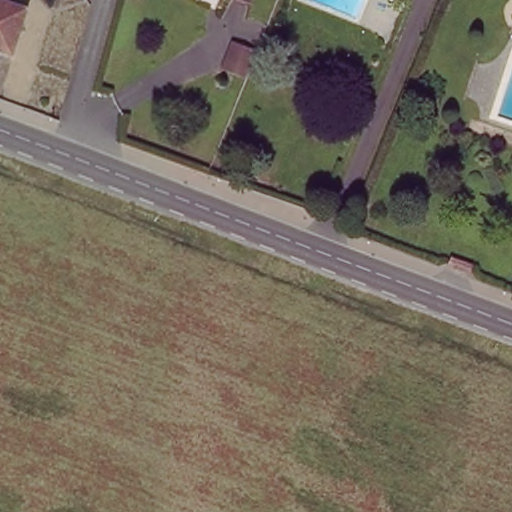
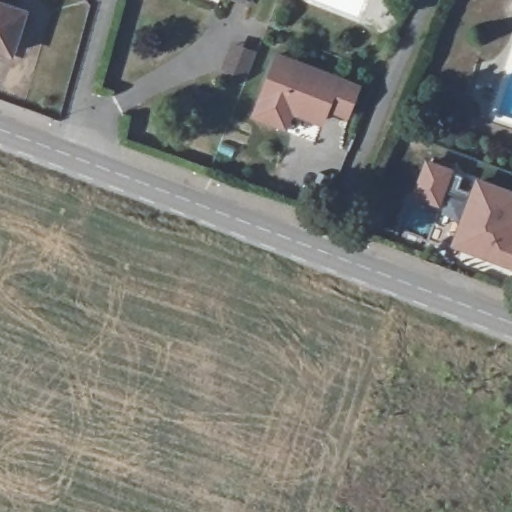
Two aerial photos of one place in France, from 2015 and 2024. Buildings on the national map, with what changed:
unchanged [(247,0),(249,0),(249,1),(247,0)]
unchanged [(10,53),(0,50),(0,3),(24,11),(10,53)]
unchanged [(251,51),(242,75),(223,68),(233,44),(251,51)]
new [(277,54),(358,86),(345,115),(326,108),(322,120),(294,109),(287,112),(283,123),(254,112),(277,54)]
new [(457,236),(470,200),(442,189),(437,201),(415,193),(427,162),(462,175),(458,187),(473,192),(477,181),(512,194),(512,265),(482,255),(454,244),(457,236)]

